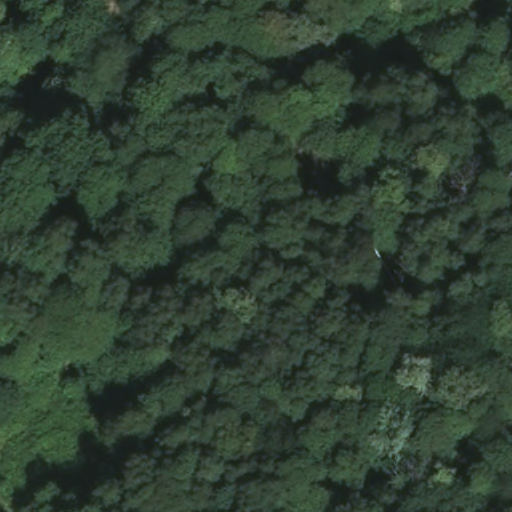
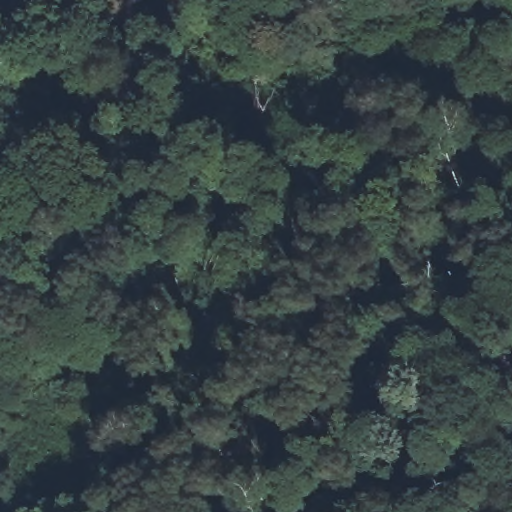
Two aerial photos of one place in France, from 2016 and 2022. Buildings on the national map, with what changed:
unchanged [(95,30),(79,0),(98,0),(110,25),(95,30)]

